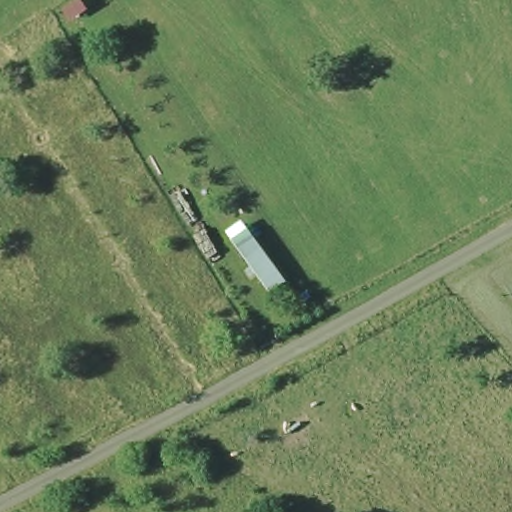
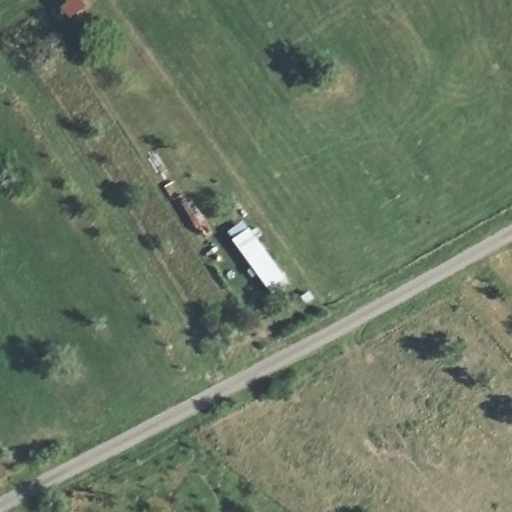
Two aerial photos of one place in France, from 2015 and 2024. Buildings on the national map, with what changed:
unchanged [(291,285),(273,300),(231,242),(251,230),(291,285)]

